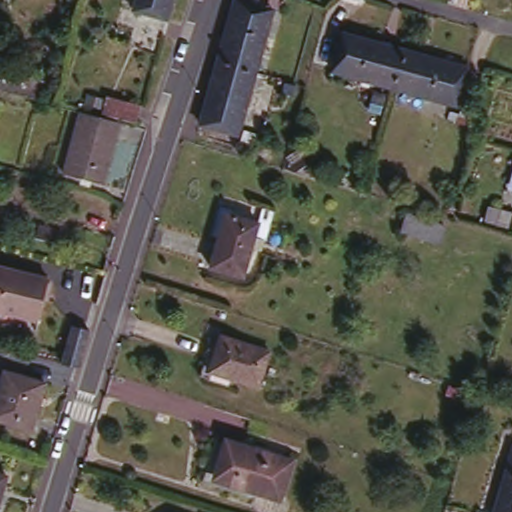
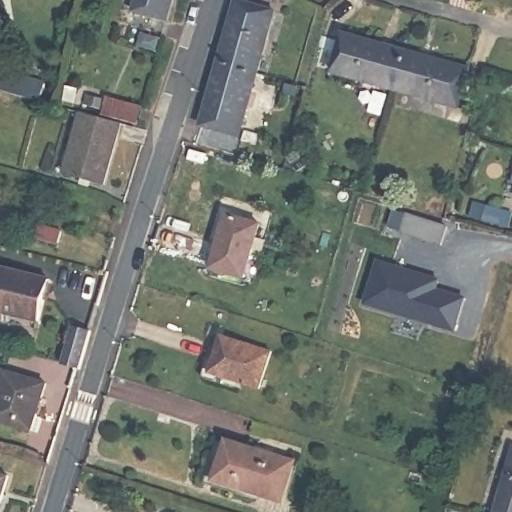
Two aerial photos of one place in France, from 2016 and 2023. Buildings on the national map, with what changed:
unchanged [(131,14),(136,0),(172,0),(165,24),(131,14)]
unchanged [(222,62),(241,0),(275,10),(256,72),(222,62)]
unchanged [(406,53),(395,91),(331,74),(343,34),(406,53)]
unchanged [(468,111),(456,109),(395,91),(406,53),(467,70),(464,81),(476,84),(468,111)]
unchanged [(3,89),(0,89),(0,60),(9,61),(3,89)]
unchanged [(222,62),(256,72),(238,134),(204,124),(222,62)]
unchanged [(8,90),(14,69),(69,85),(63,105),(8,90)]
unchanged [(108,96),(139,105),(134,123),(103,114),(108,96)]
unchanged [(78,115),(116,124),(102,186),(64,178),(78,115)]
unchanged [(271,150),(267,164),(251,159),(255,145),(271,150)]
unchanged [(213,272),(223,239),(216,237),(225,209),(234,212),(233,218),(261,227),(244,282),(213,272)]
unchanged [(447,232),(441,249),(404,235),(410,218),(447,232)]
unchanged [(40,225),(62,232),(58,243),(37,237),(40,225)]
new [(377,259),(430,276),(425,289),(465,303),(453,338),(360,307),(377,259)]
unchanged [(0,324),(0,316),(2,309),(0,308),(0,263),(49,277),(34,334),(0,324)]
unchanged [(77,371),(76,370),(62,366),(73,327),(89,332),(77,371)]
unchanged [(222,337),(273,354),(263,388),(211,372),(222,337)]
unchanged [(5,371),(0,389),(0,356),(8,359),(5,371)]
unchanged [(0,421),(0,389),(5,371),(45,383),(30,431),(0,421)]
unchanged [(293,462),(281,503),(244,491),(245,486),(215,477),(226,442),(293,462)]
unchanged [(512,463),(512,512),(498,512),(512,463)]
unchanged [(0,503),(0,475),(8,477),(0,503)]

